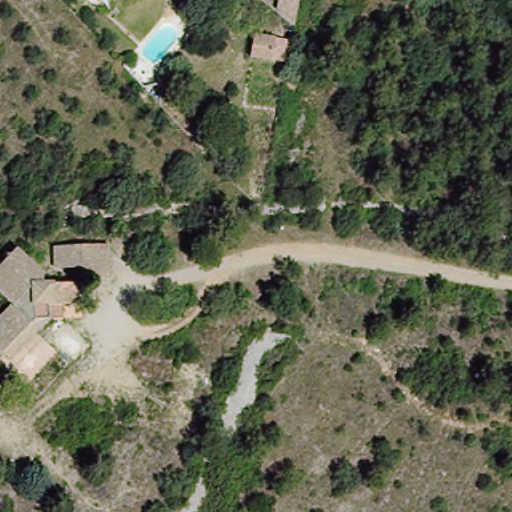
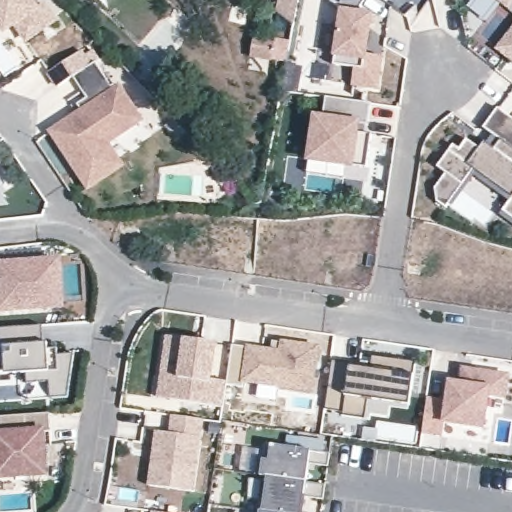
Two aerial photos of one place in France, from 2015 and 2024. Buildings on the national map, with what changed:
new [(36,1),(46,1),(60,21),(24,43),(16,26),(3,35),(0,29),(0,0),(35,0),(36,1)]
unchanged [(293,34),(273,30),(278,0),(299,0),(293,34)]
new [(360,12),(373,11),(368,49),(382,54),(380,91),(353,89),(355,66),(334,63),(341,5),(333,0),(367,0),(360,12)]
new [(512,4),(508,9),(496,0),(512,0),(512,4)]
new [(512,27),(512,58),(497,47),(512,27)]
unchanged [(277,39),(274,64),(247,61),(250,37),(277,39)]
new [(91,61),(96,59),(112,85),(120,80),(143,119),(109,140),(126,165),(127,166),(88,191),(45,129),(80,106),(76,102),(85,96),(72,75),(55,84),(46,70),(82,47),(91,61)]
new [(368,123),(373,124),(365,181),(350,180),(348,200),(301,194),(304,169),(308,169),(313,117),(322,117),(325,97),(370,104),(368,123)]
new [(512,216),(501,208),(511,192),(473,169),(446,205),(440,202),(436,185),(445,169),(438,164),(455,140),(461,145),(468,136),(477,143),(482,135),(486,138),(492,129),(484,124),(499,104),(512,113),(512,216)]
new [(1,181),(0,182),(0,179),(1,181)]
demolished [(117,280),(81,281),(83,301),(47,302),(37,316),(51,326),(15,366),(5,356),(0,361),(0,319),(13,305),(0,288),(0,262),(18,242),(60,279),(60,247),(115,245),(117,280)]
new [(56,262),(58,305),(0,308),(0,265),(56,262)]
new [(48,346),(57,345),(58,363),(71,363),(67,393),(25,395),(24,369),(0,370),(0,326),(41,321),(48,346)]
new [(311,397),(226,385),(223,407),(156,397),(165,336),(216,344),(211,380),(227,382),(232,345),(271,350),(272,340),(318,347),(311,397)]
new [(336,365),(375,370),(376,360),(415,366),(410,401),(370,395),(368,410),(346,406),(346,403),(331,400),(336,365)]
new [(451,403),(454,383),(464,385),(466,370),(471,371),(508,377),(505,399),(490,397),(486,426),(446,420),(444,435),(426,433),(431,400),(451,403)]
new [(51,408),(53,432),(47,427),(50,474),(0,479),(0,428),(1,428),(0,417),(0,411),(51,408)]
new [(193,493),(148,487),(155,431),(168,433),(171,411),(205,416),(193,493)]
new [(310,463),(306,483),(324,484),(323,500),(302,499),(301,512),(261,512),(266,473),(260,472),(265,443),(328,452),(328,466),(310,463)]

